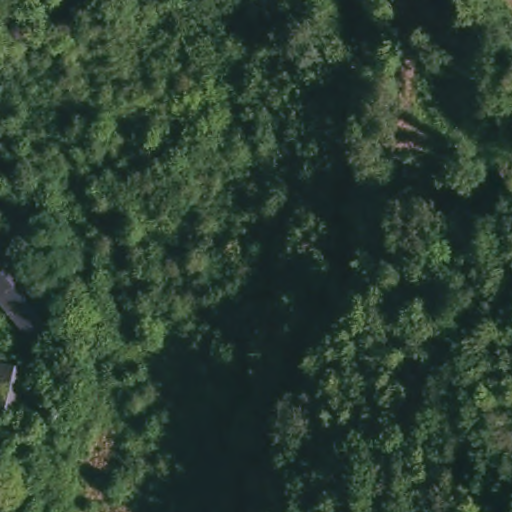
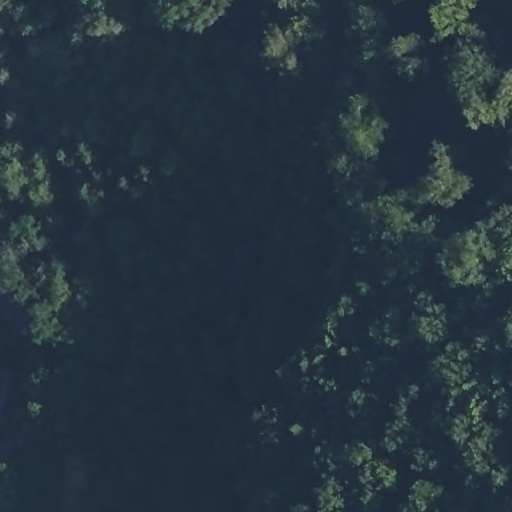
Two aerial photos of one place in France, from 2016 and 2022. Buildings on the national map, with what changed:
unchanged [(33,335),(0,299),(0,244),(61,310),(33,335)]
unchanged [(0,362),(35,370),(22,419),(0,413),(0,362)]

